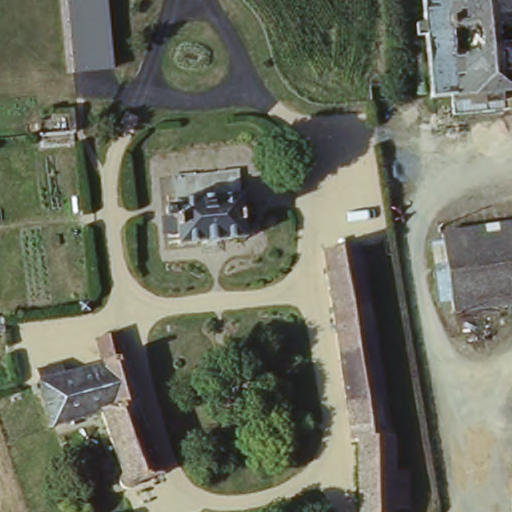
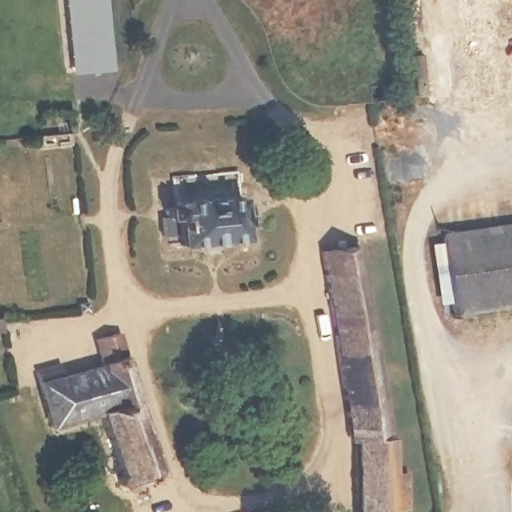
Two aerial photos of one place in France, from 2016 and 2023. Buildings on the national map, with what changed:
unchanged [(114,71),(73,75),(67,0),(107,0),(114,71)]
demolished [(512,111),(457,116),(455,95),(432,97),(426,34),(417,35),(415,18),(425,18),(424,0),(512,0),(512,111)]
unchanged [(67,158),(38,161),(36,149),(42,148),(67,146),(67,158)]
unchanged [(234,170),(237,205),(249,204),(250,223),(238,224),(239,239),(177,246),(176,228),(159,229),(158,214),(164,214),(164,202),(172,202),(169,176),(234,170)]
unchanged [(344,195),(333,194),(332,184),(342,181),(344,195)]
unchanged [(512,223),(512,263),(447,272),(441,233),(512,223)]
unchanged [(397,508),(397,512),(358,512),(358,441),(351,439),(322,248),(354,244),(388,436),(395,437),(396,469),(411,467),(411,508),(397,508)]
unchanged [(512,305),(452,313),(447,272),(512,263),(512,305)]
unchanged [(35,373),(60,365),(63,373),(98,361),(95,336),(117,329),(160,470),(136,478),(119,491),(117,472),(97,417),(48,426),(40,393),(35,373)]

